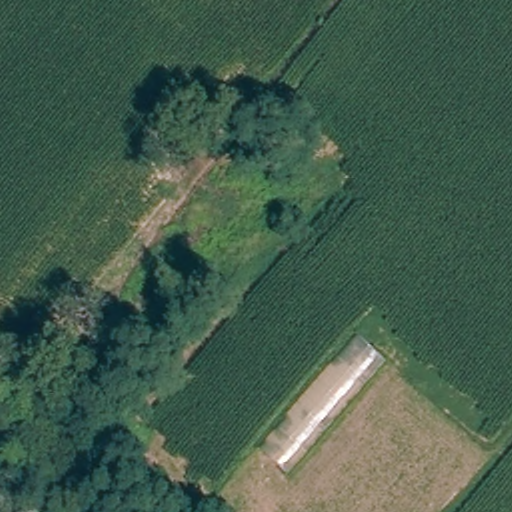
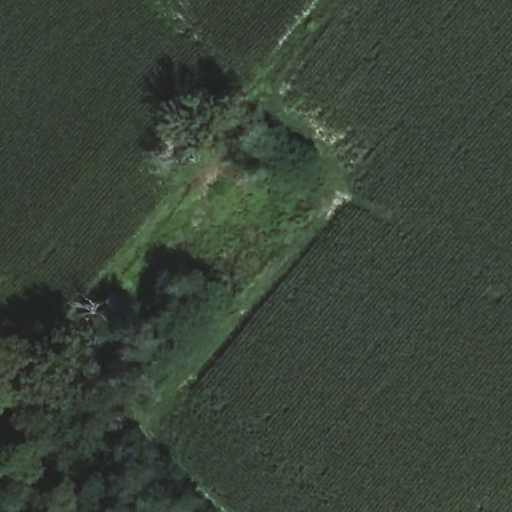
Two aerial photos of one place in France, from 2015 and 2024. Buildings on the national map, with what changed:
demolished [(353,334),(384,361),(287,473),(261,448),(353,334)]

